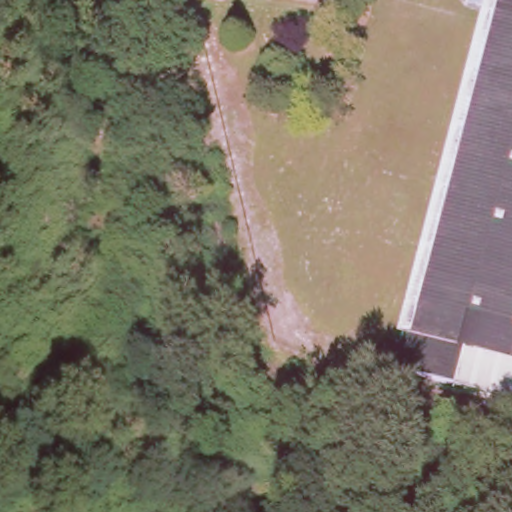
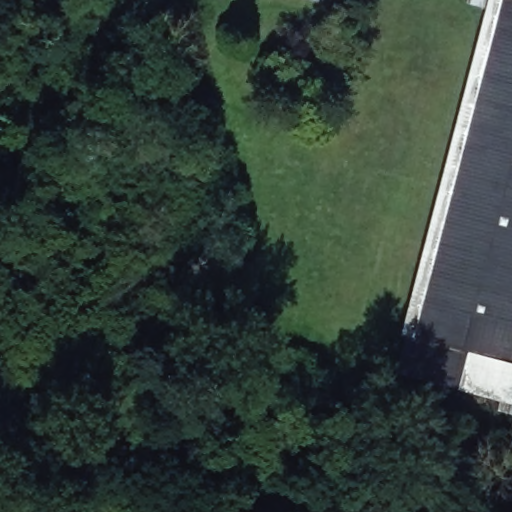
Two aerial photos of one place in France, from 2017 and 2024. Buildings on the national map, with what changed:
unchanged [(309,0),(328,0),(326,5),(309,0)]
unchanged [(461,388),(406,373),(428,285),(498,8),(500,0),(512,0),(512,401),(461,388)]

